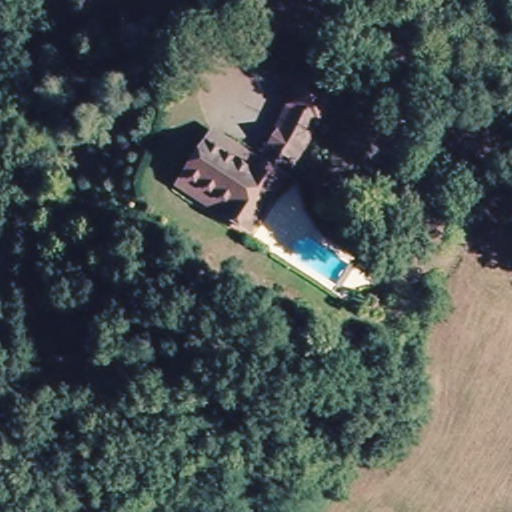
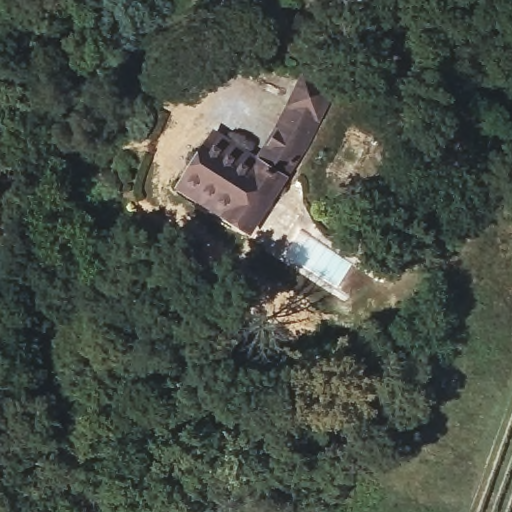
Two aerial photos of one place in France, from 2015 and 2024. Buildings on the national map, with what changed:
unchanged [(207,144),(213,135),(256,164),(275,133),(290,102),(286,100),(297,72),(328,87),(302,148),(247,234),(221,217),(177,189),(182,181),(207,144)]

